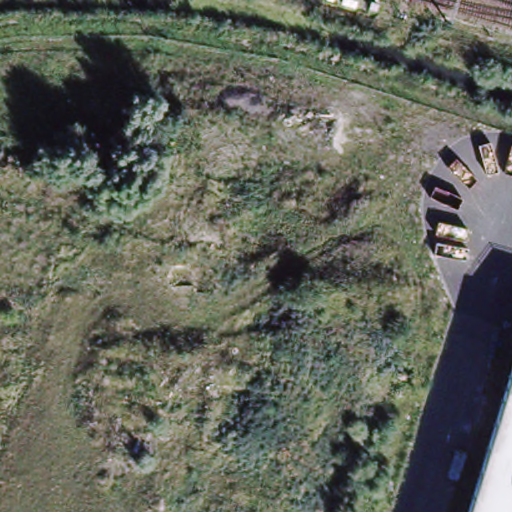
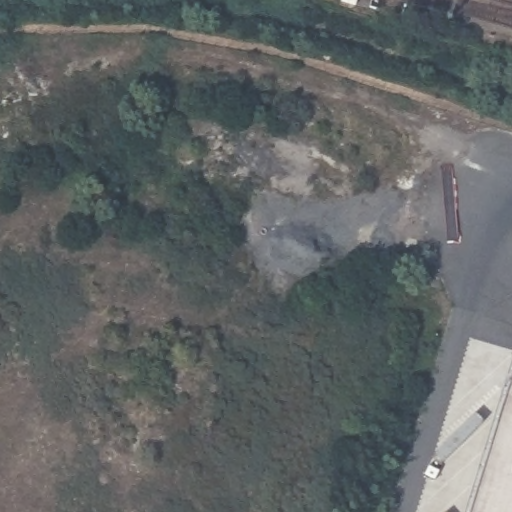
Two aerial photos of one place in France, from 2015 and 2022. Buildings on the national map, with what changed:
unchanged [(472,512),(512,382),(512,512),(472,512)]

